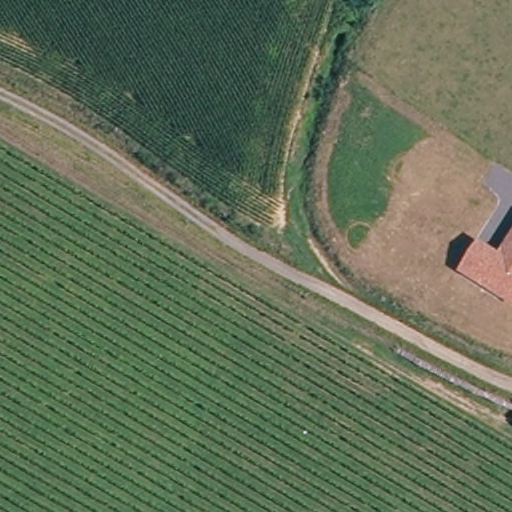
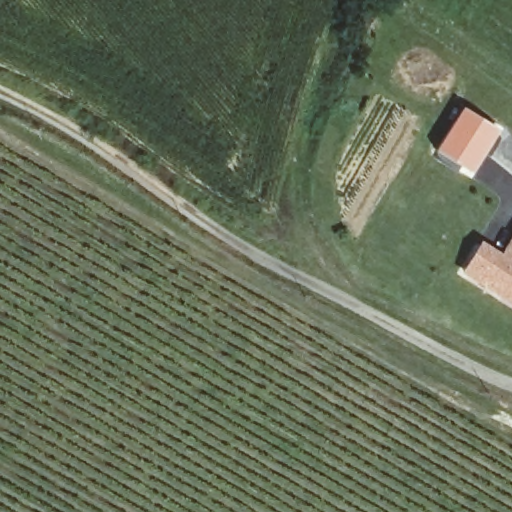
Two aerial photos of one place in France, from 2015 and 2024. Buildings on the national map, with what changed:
new [(497,130),(471,172),(435,152),(462,108),(497,130)]
unchanged [(512,233),(512,305),(458,273),(482,239),(500,252),(512,233)]

